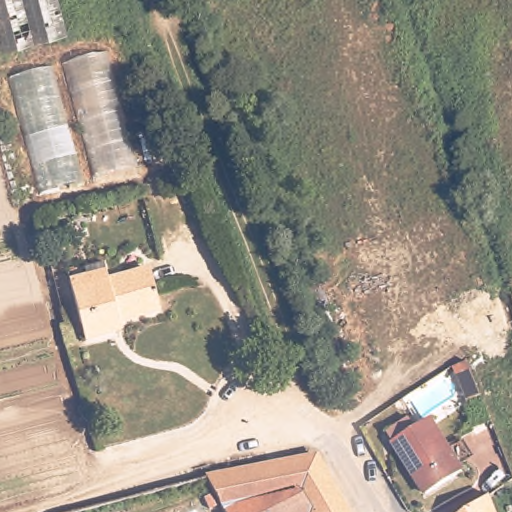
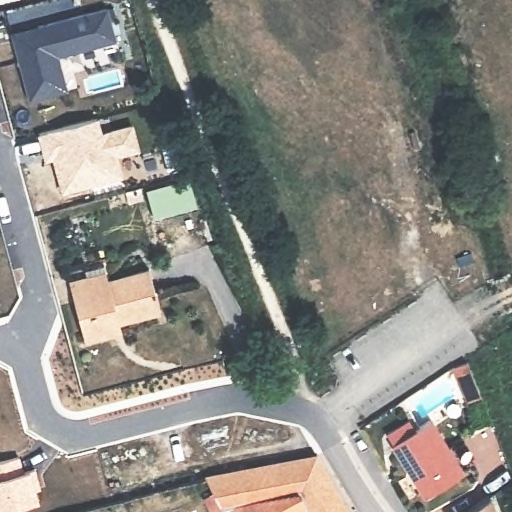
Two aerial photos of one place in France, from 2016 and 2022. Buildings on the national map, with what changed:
new [(36,34),(34,26),(104,7),(113,40),(55,55),(65,90),(27,100),(10,40),(36,34)]
demolished [(99,29),(139,166),(42,194),(0,63),(0,54),(60,39),(99,29)]
new [(142,151),(121,157),(124,177),(61,193),(53,161),(44,164),(37,134),(102,117),(106,130),(136,124),(142,151)]
unchanged [(96,274),(99,285),(152,273),(162,312),(116,323),(117,333),(87,339),(74,280),(96,274)]
unchanged [(464,356),(480,395),(463,402),(449,366),(464,356)]
unchanged [(461,477),(426,498),(392,445),(386,434),(407,422),(413,432),(428,423),(461,477)]
unchanged [(288,463),(315,458),(317,458),(348,512),(224,512),(207,478),(288,463)]
new [(24,473),(37,470),(39,483),(34,485),(38,501),(0,510),(0,464),(21,459),(24,473)]
unchanged [(491,497),(498,512),(468,512),(491,497)]

